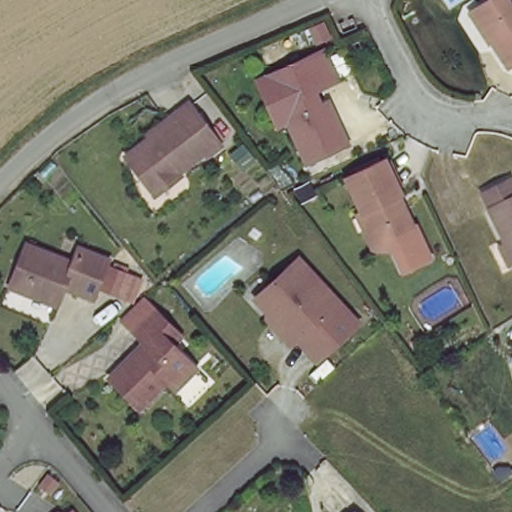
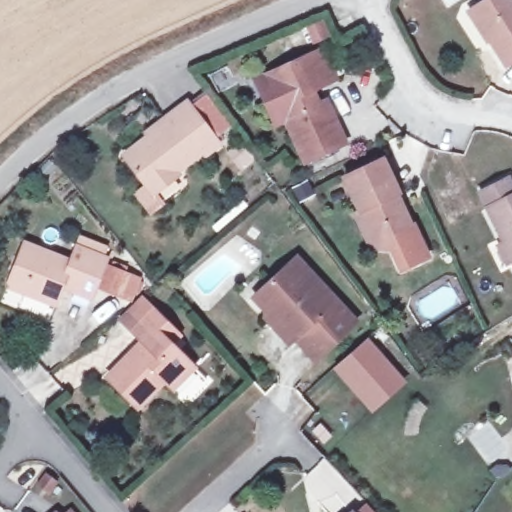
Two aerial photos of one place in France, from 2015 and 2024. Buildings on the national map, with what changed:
unchanged [(478,5),(486,0),(508,0),(510,3),(512,2),(512,63),(507,66),(475,19),(478,5)]
unchanged [(273,74),(325,48),(315,30),(327,23),(335,41),(332,45),(345,83),(328,90),(352,146),(315,165),(273,74)]
unchanged [(302,171),(284,131),(275,134),(255,83),(273,74),(315,165),(302,171)]
unchanged [(128,163),(180,124),(175,115),(188,108),(220,151),(210,158),(206,154),(178,175),(175,171),(150,191),(128,163)]
unchanged [(355,217),(362,213),(345,180),(392,160),(419,229),(412,232),(394,240),(402,250),(388,255),(372,260),(355,217)]
unchanged [(512,183),(512,249),(483,196),(512,183)]
unchanged [(430,261),(398,276),(388,255),(402,250),(394,240),(412,232),(419,229),(430,261)]
unchanged [(57,304),(10,285),(27,241),(74,261),(80,247),(108,258),(93,296),(64,285),(57,304)]
unchanged [(267,323),(275,317),(268,316),(255,301),(300,263),(358,329),(315,365),(297,344),(290,349),(267,323)]
unchanged [(173,394),(165,385),(138,412),(108,380),(144,346),(132,334),(154,313),(181,340),(172,349),(187,363),(197,372),(173,394)]
new [(367,336),(407,383),(371,414),(331,369),(367,336)]

